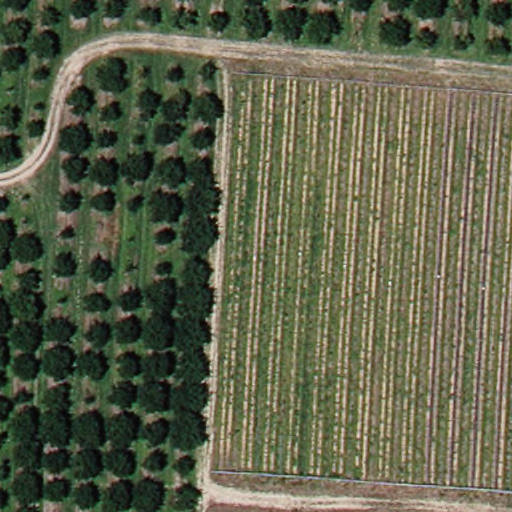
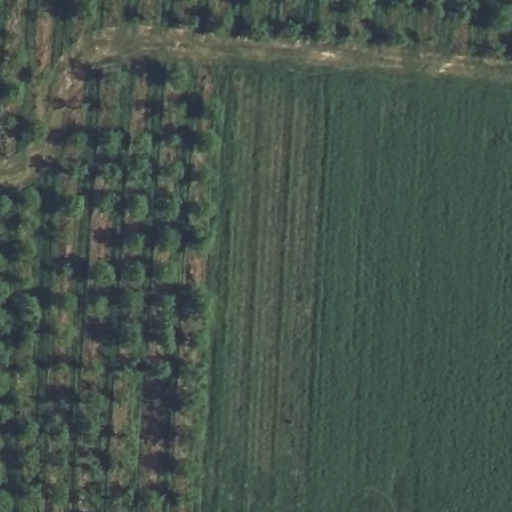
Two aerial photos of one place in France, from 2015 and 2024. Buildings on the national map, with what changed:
[]

